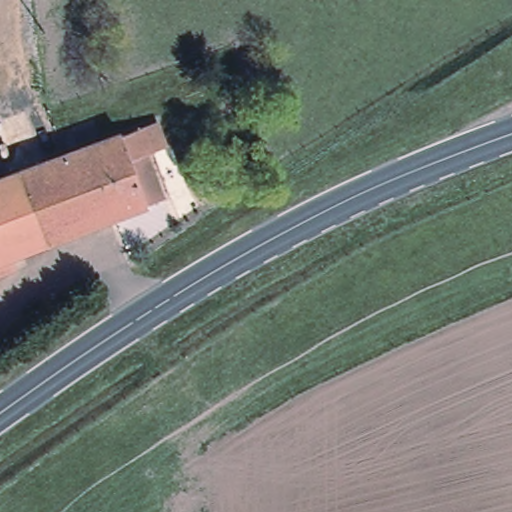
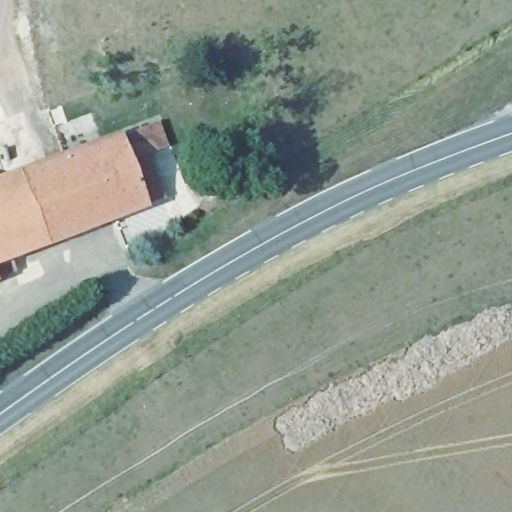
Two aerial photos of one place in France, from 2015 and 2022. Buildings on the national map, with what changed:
unchanged [(133,199),(105,210),(80,140),(108,130),(110,132),(147,118),(155,142),(133,150),(149,193),(133,199)]
unchanged [(80,140),(105,210),(0,250),(0,169),(80,140)]

